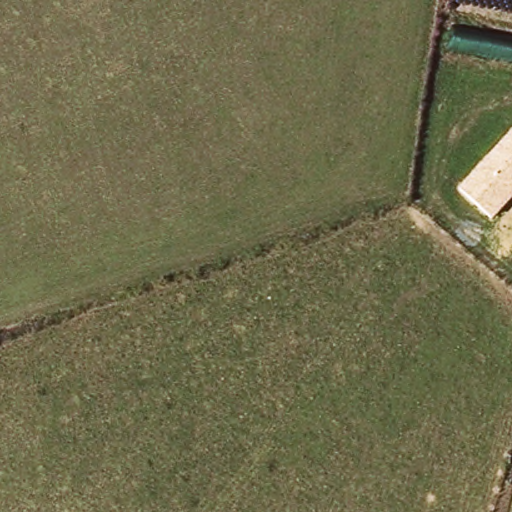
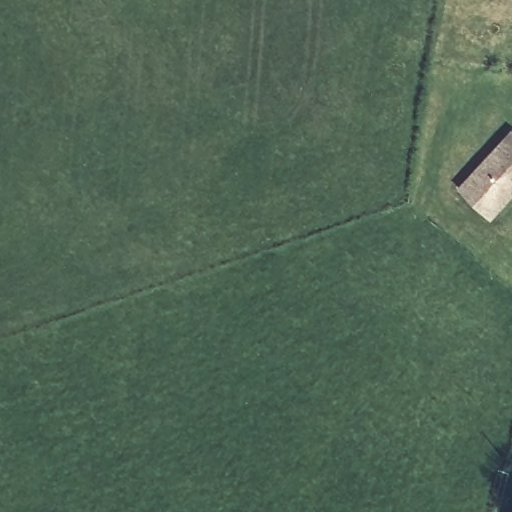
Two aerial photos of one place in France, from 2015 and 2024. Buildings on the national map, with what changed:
unchanged [(492,219),(459,189),(512,130),(512,198),(492,219)]

